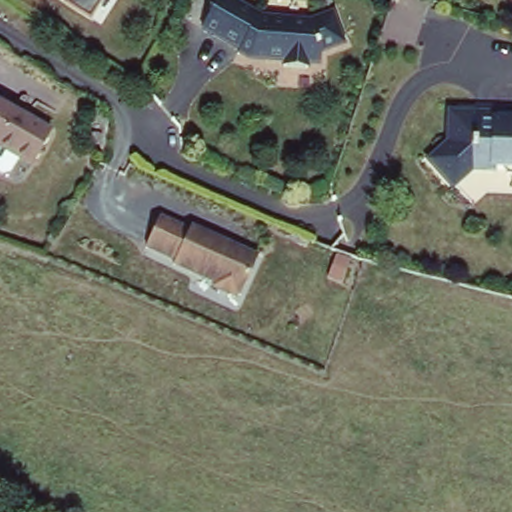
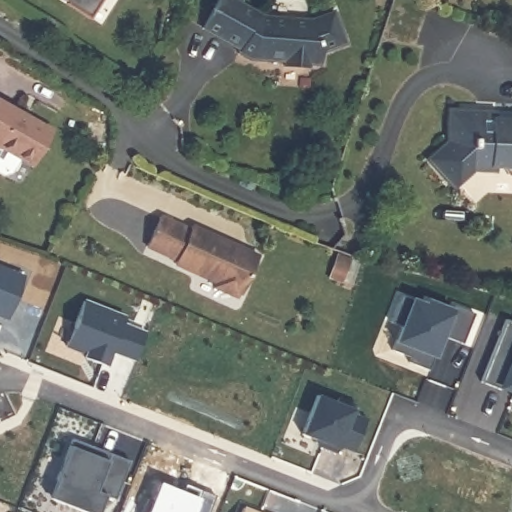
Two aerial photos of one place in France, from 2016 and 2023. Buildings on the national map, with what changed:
unchanged [(87,10),(72,0),(95,0),(87,10)]
unchanged [(241,54),(201,32),(216,0),(218,0),(258,20),(256,24),(306,25),(328,15),(341,42),(322,52),(322,62),(311,61),(310,66),(286,66),(287,61),(265,60),(250,59),(241,54)]
unchanged [(511,167),(508,171),(498,170),(493,166),(464,164),(447,176),(428,154),(429,150),(450,131),(454,108),(460,109),(459,105),(480,109),(499,109),(499,114),(512,116),(512,167),(511,167)]
unchanged [(0,152),(0,106),(47,132),(29,166),(0,152)]
unchanged [(187,228),(189,225),(256,255),(237,301),(169,271),(171,265),(141,254),(158,214),(187,228)]
new [(5,318),(0,316),(0,266),(22,275),(5,318)]
new [(461,342),(441,334),(427,368),(407,361),(409,356),(390,348),(400,325),(388,320),(398,294),(423,303),(425,298),(450,308),(451,304),(472,312),(461,342)]
new [(128,315),(125,324),(146,333),(136,361),(113,353),(108,365),(84,357),(86,353),(68,345),(85,300),(128,315)]
new [(501,387),(502,382),(500,389),(480,381),(505,320),(512,322),(512,392),(501,387)]
new [(511,397),(512,394),(512,398),(511,397)]
new [(368,416),(355,452),(302,433),(316,395),(368,416)]
new [(116,498),(101,493),(96,512),(82,512),(50,499),(71,440),(131,462),(116,498)]
new [(181,491),(182,485),(215,497),(209,512),(147,512),(157,482),(181,491)]
new [(241,512),(244,505),(261,512),(241,512)]

